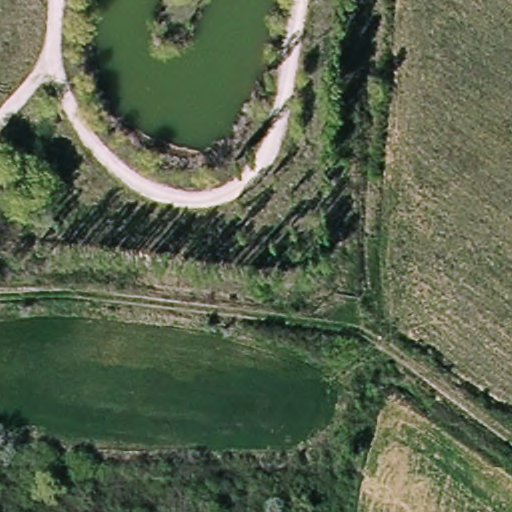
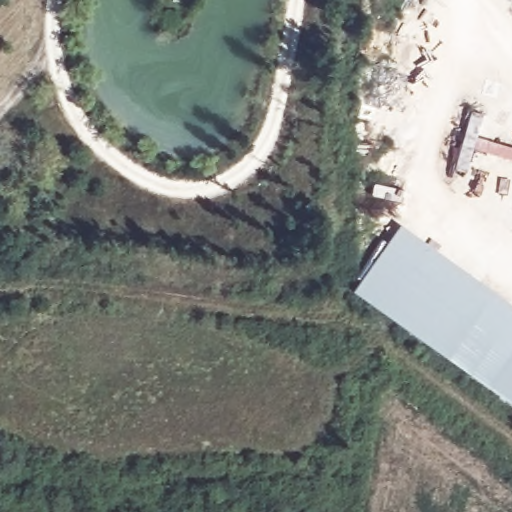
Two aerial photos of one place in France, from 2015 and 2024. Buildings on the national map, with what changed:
new [(477,138),(512,148),(512,160),(474,149),(466,174),(455,171),(473,110),(484,114),(477,138)]
new [(402,224),(512,303),(512,402),(355,292),(402,224)]

